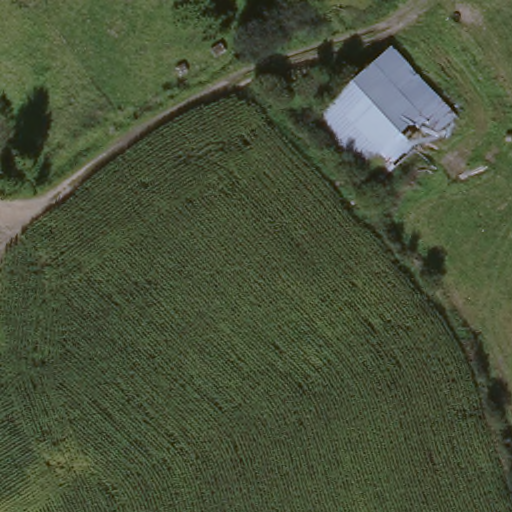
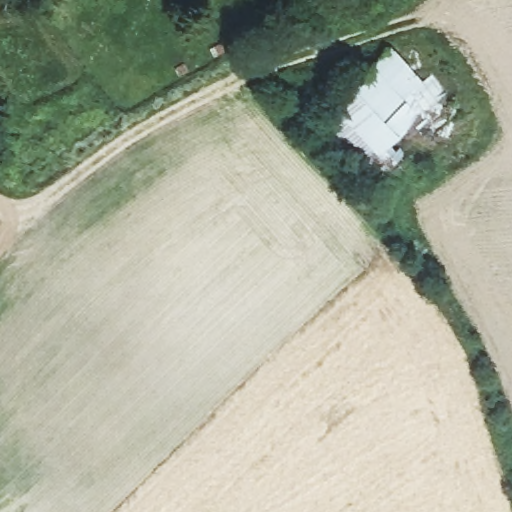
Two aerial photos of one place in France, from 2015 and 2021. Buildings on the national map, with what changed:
unchanged [(308,18),(276,35),(263,11),(284,0),(299,0),(308,18)]
unchanged [(455,124),(386,192),(316,122),(388,53),(455,124)]

